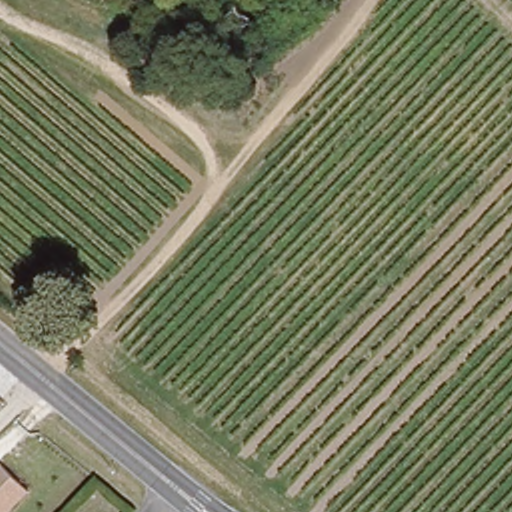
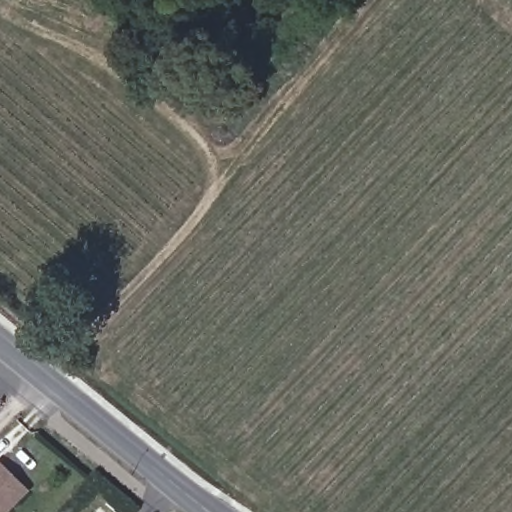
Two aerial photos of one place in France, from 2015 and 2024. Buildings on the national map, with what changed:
unchanged [(1,463),(30,491),(9,512),(0,512),(0,464),(1,463)]

